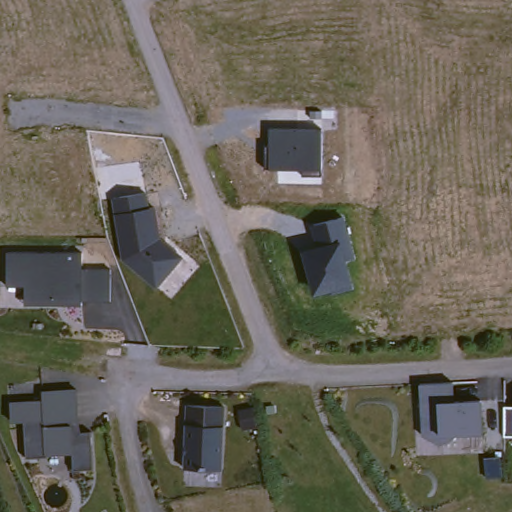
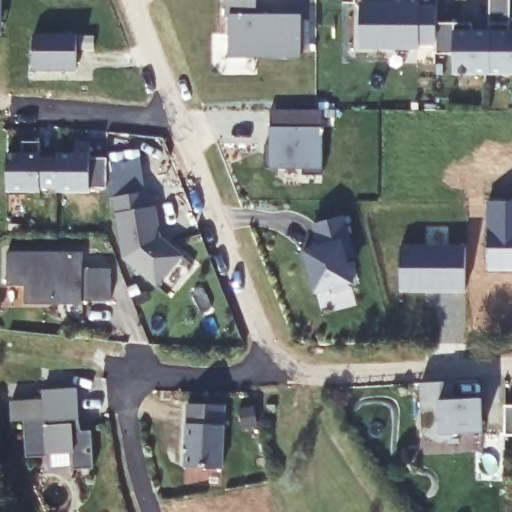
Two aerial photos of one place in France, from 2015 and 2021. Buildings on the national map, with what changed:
new [(2,20),(0,20),(0,0),(2,0),(2,20)]
new [(226,0),(256,0),(256,15),(301,15),(301,58),(230,57),(230,16),(226,16),(226,0)]
new [(490,0),(510,0),(510,32),(512,32),(512,74),(490,74),(490,32),(490,0)]
new [(436,44),(420,45),(420,48),(361,49),(360,2),(421,3),(421,7),(436,6),(436,23),(436,44)]
new [(436,23),(472,23),(472,31),(490,32),(490,74),(453,74),(453,54),(436,54),(436,23)]
new [(34,34),(78,34),(77,71),(35,72),(34,34)]
unchanged [(270,128),(323,129),(321,176),(301,176),(301,169),(270,168),(270,128)]
new [(7,154),(22,154),(22,142),(41,142),(41,157),(57,157),(57,187),(40,187),(40,191),(7,191),(7,154)]
new [(57,187),(57,157),(57,154),(76,154),(76,142),(91,142),(90,158),(107,158),(107,189),(90,188),(90,192),(57,192),(57,187)]
unchanged [(122,257),(114,196),(147,192),(149,205),(160,205),(164,236),(185,254),(160,285),(122,257)]
unchanged [(301,248),(319,244),(312,223),(345,215),(356,257),(346,259),(353,286),(312,295),(301,248)]
unchanged [(113,298),(84,298),(84,302),(25,300),(26,284),(9,283),(10,251),(83,250),(84,266),(112,266),(113,298)]
unchanged [(455,382),(455,399),(483,397),(484,432),(455,431),(454,438),(423,436),(420,382),(455,382)]
unchanged [(74,454),(28,456),(26,421),(13,421),(12,399),(44,397),(43,389),(80,387),(82,430),(95,429),(97,469),(75,469),(74,454)]
unchanged [(186,402),(227,403),(226,470),(185,467),(186,402)]
unchanged [(505,405),(512,405),(512,436),(505,436),(505,405)]

